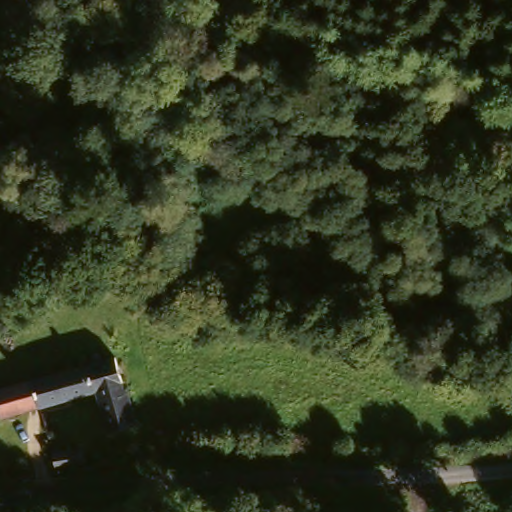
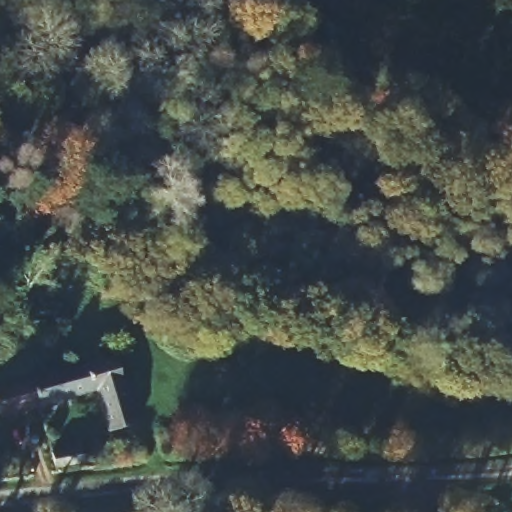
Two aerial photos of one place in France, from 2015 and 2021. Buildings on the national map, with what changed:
unchanged [(103,361),(111,359),(120,394),(130,432),(102,439),(92,394),(0,419),(0,389),(42,378),(103,361)]
unchanged [(48,467),(47,453),(75,451),(76,465),(48,467)]

